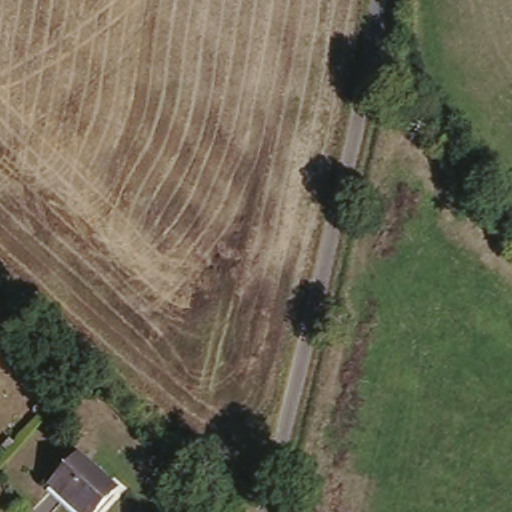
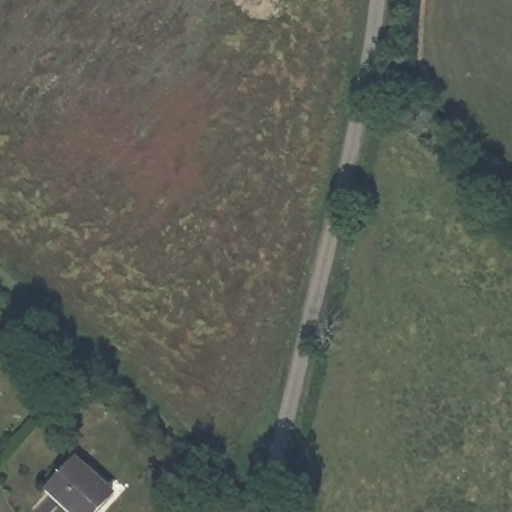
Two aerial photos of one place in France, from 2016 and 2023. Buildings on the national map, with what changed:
unchanged [(82,459),(119,493),(102,512),(85,512),(56,486),(82,459)]

